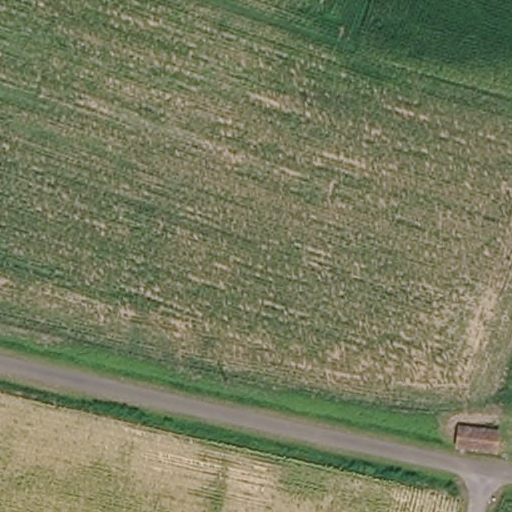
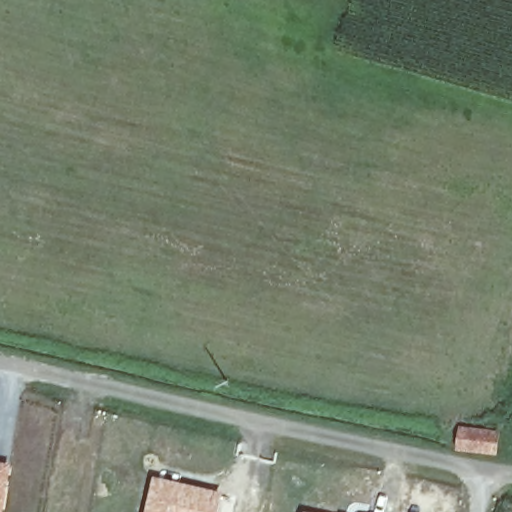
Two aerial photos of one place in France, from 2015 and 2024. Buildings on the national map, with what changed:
unchanged [(458,425),(499,430),(497,453),(456,447),(458,425)]
new [(12,466),(4,512),(0,512),(0,464),(12,466)]
new [(155,477),(222,493),(218,512),(147,512),(155,477)]

